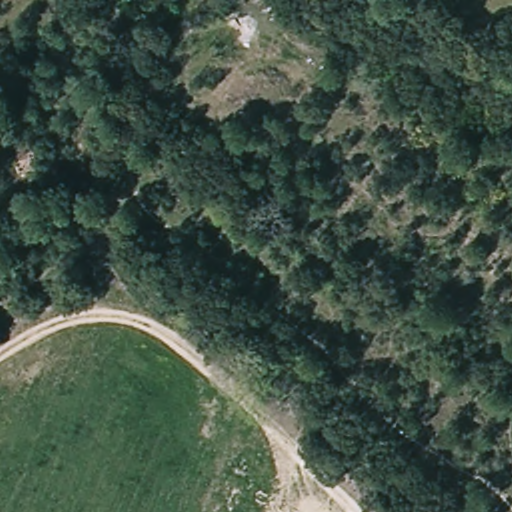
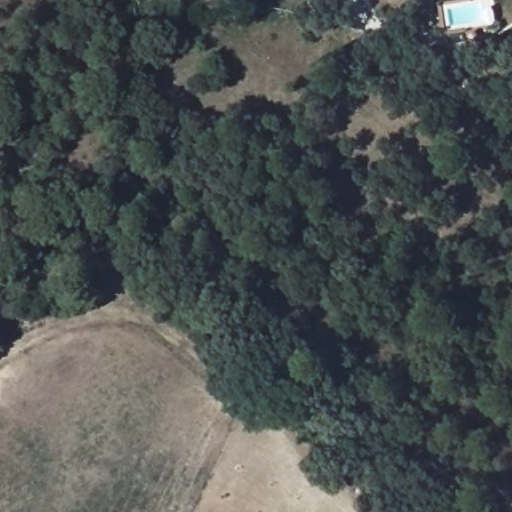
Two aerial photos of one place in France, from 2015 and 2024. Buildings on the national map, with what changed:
unchanged [(45,174),(23,179),(17,150),(40,147),(45,174)]

